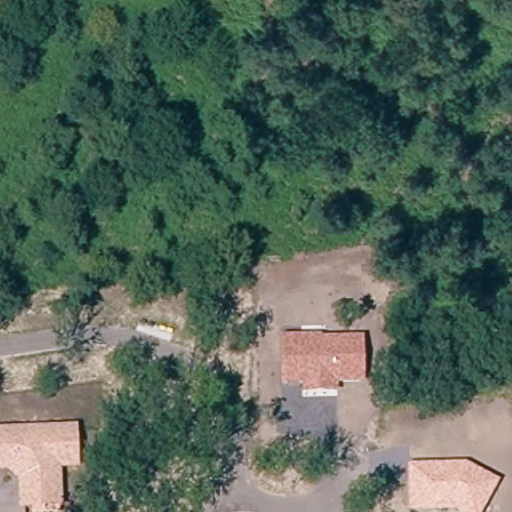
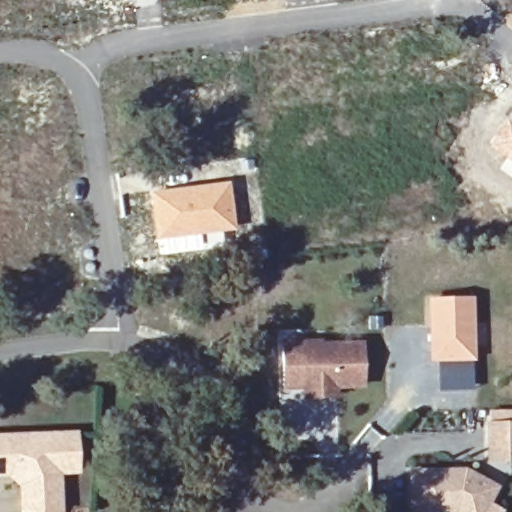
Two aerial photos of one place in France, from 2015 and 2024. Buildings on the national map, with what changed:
new [(512,123),(512,164),(487,147),(506,119),(512,123)]
new [(155,240),(149,191),(228,181),(235,229),(155,240)]
new [(427,296),(473,295),(475,360),(428,361),(427,296)]
unchanged [(337,387),(337,396),(302,397),(301,388),(280,388),(279,338),(321,337),(322,340),(363,342),(364,387),(337,387)]
new [(486,420),(512,420),(512,461),(486,461),(486,420)]
unchanged [(77,430),(78,474),(60,475),(61,512),(18,512),(16,486),(7,477),(0,477),(0,433),(77,430)]
unchanged [(406,467),(466,467),(499,484),(484,512),(408,512),(406,467)]

